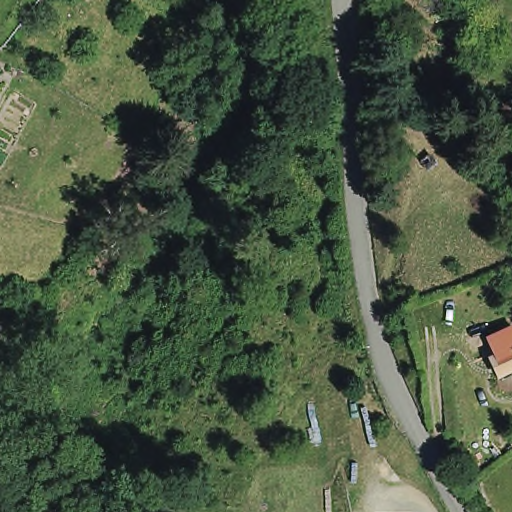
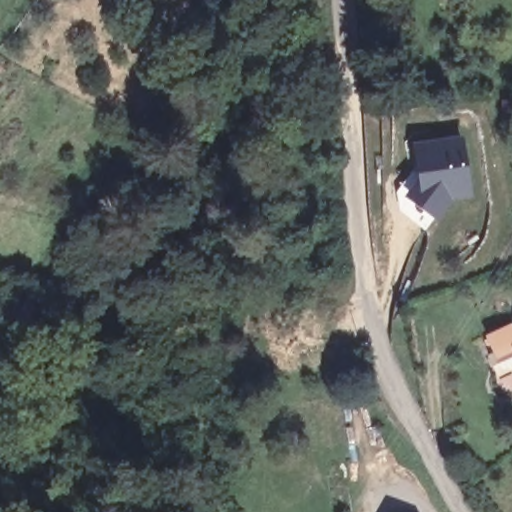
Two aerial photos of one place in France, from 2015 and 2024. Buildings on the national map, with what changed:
unchanged [(512,101),(512,121),(502,121),(502,101),(512,101)]
new [(419,163),(417,153),(434,151),(433,144),(462,140),(470,195),(452,197),(439,214),(404,186),(419,163)]
unchanged [(502,366),(494,348),(512,340),(512,361),(502,366)]

